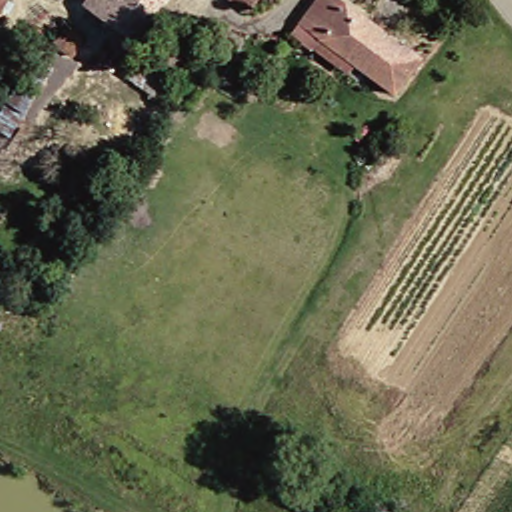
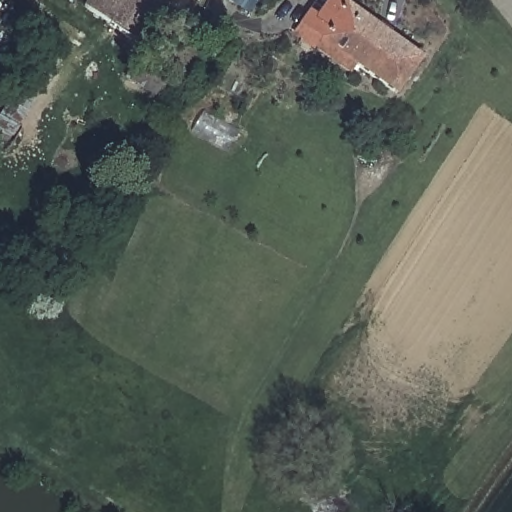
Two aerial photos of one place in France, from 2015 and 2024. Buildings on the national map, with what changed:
unchanged [(0,0),(19,0),(0,34),(0,0)]
unchanged [(90,8),(96,0),(168,0),(139,42),(90,8)]
unchanged [(267,0),(260,12),(249,4),(242,0),(267,0)]
unchanged [(335,40),(311,22),(327,0),(352,0),(430,60),(405,94),(363,62),(357,70),(328,49),(335,40)]
unchanged [(68,51),(46,35),(59,15),(89,36),(86,42),(76,56),(68,51)]
unchanged [(0,123),(32,74),(46,52),(60,61),(46,82),(11,137),(0,131),(0,123)]
unchanged [(136,64),(166,85),(162,92),(157,99),(127,77),(131,72),(136,64)]

